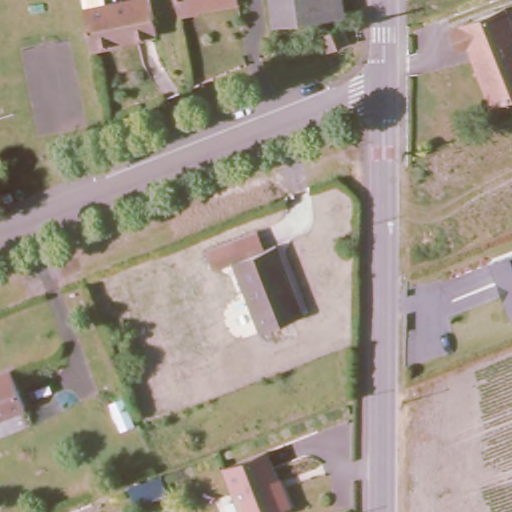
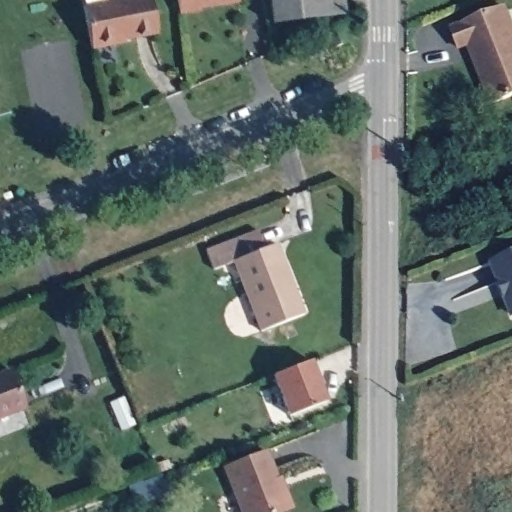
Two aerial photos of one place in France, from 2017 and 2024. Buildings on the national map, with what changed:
unchanged [(95,43),(87,1),(92,0),(155,0),(160,26),(127,33),(127,37),(118,38),(95,43)]
unchanged [(204,9),(183,13),(181,0),(242,0),(204,6),(204,9)]
unchanged [(272,22),(269,0),(343,0),(344,13),(272,22)]
unchanged [(509,5),(512,15),(512,96),(494,102),(472,42),(462,46),(455,26),(509,5)]
unchanged [(347,40),(329,48),(322,31),(340,23),(347,40)]
unchanged [(267,159),(250,165),(247,158),(264,152),(267,159)]
unchanged [(292,317),(260,329),(234,259),(275,243),(292,285),(302,313),(292,317)]
unchanged [(510,317),(486,258),(512,247),(512,317),(510,317)]
new [(310,359),(326,401),(289,415),(272,374),(310,359)]
unchanged [(0,416),(0,373),(10,369),(25,406),(0,416)]
unchanged [(270,450),(285,486),(287,485),(295,506),(281,512),(247,512),(229,466),(270,450)]

